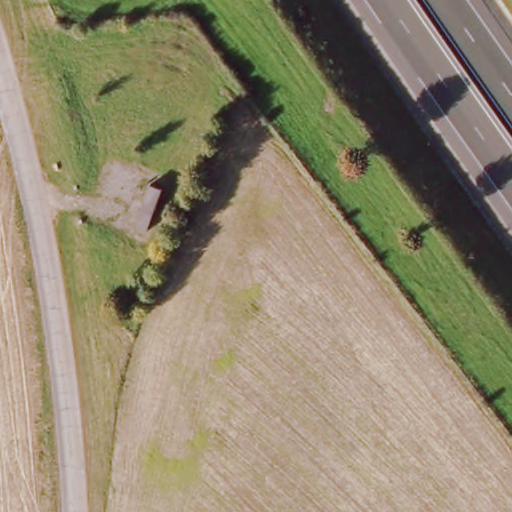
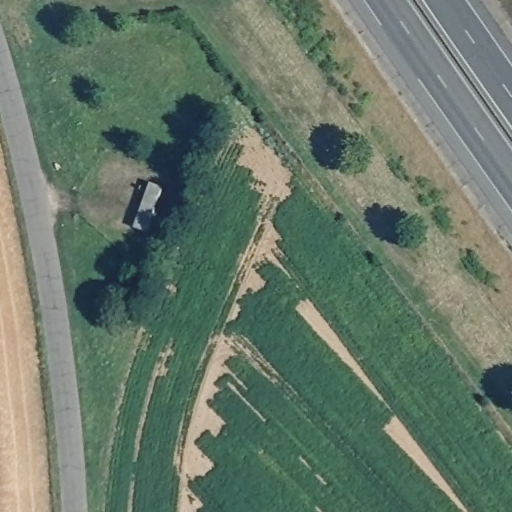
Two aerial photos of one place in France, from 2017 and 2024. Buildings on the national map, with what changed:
unchanged [(151,190),(162,194),(145,236),(133,232),(151,190)]

